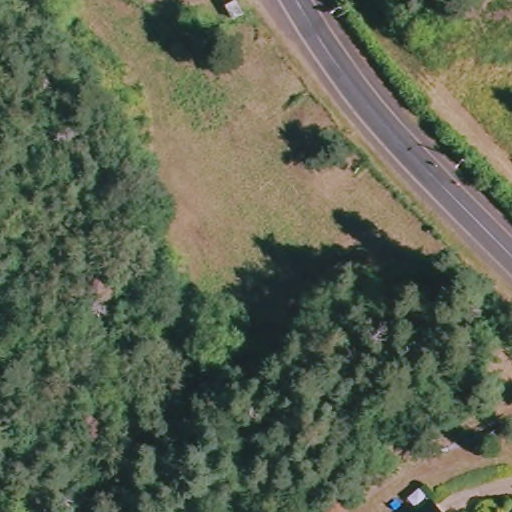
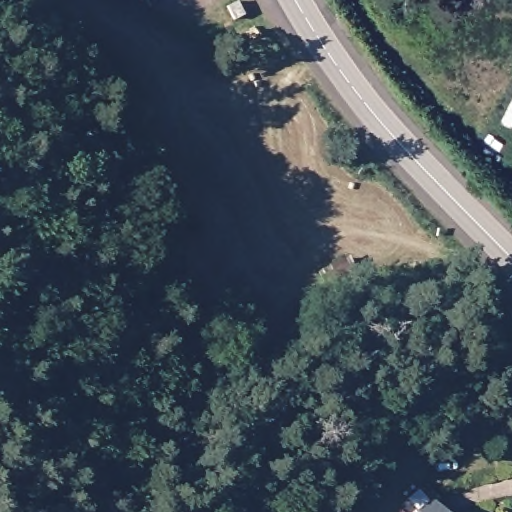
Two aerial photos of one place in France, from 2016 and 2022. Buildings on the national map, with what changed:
unchanged [(241,18),(231,21),(227,9),(238,5),(241,18)]
unchanged [(439,507),(444,512),(433,512),(439,507)]

